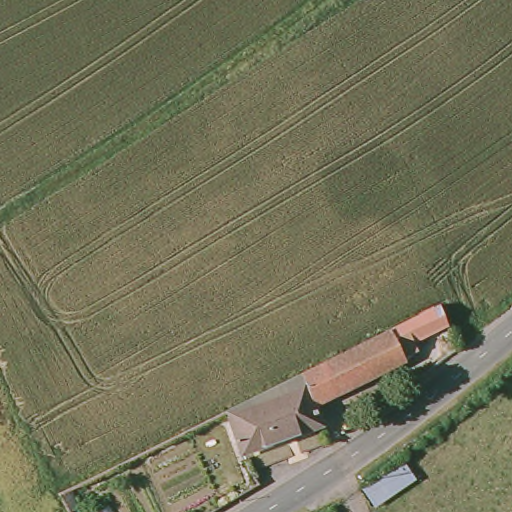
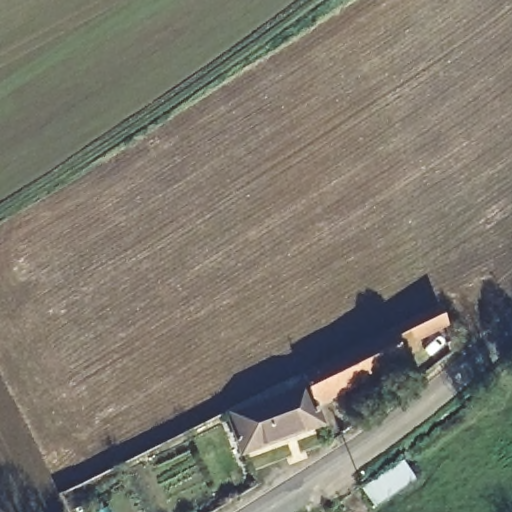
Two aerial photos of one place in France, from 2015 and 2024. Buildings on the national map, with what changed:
unchanged [(219,415),(231,410),(234,416),(243,413),(241,408),(255,402),(253,398),(279,390),(276,380),(294,371),(429,308),(433,307),(441,325),(403,342),(405,350),(396,355),(399,363),(309,405),(316,423),(233,449),(219,415)]

